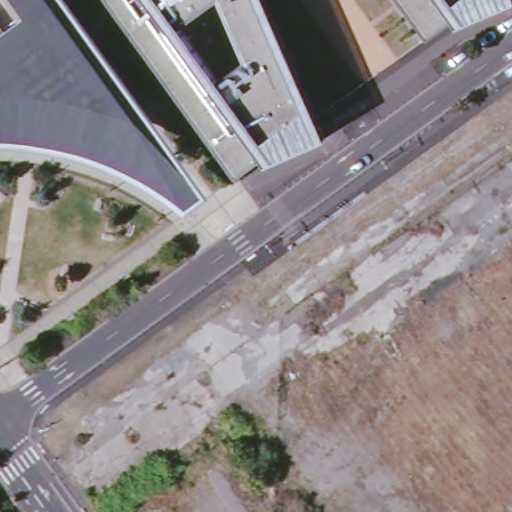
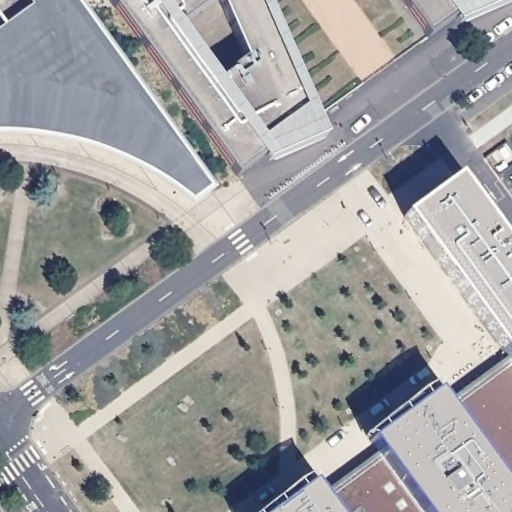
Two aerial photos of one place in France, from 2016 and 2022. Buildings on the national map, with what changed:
unchanged [(53,10),(0,48),(0,0),(67,0),(53,10)]
unchanged [(317,120),(325,139),(266,165),(262,159),(237,177),(109,0),(265,0),(317,120)]
unchanged [(457,27),(453,21),(429,39),(401,0),(512,0),(512,2),(457,27)]
unchanged [(57,16),(75,3),(212,195),(215,199),(191,216),(187,213),(179,207),(164,197),(142,183),(119,171),(95,162),(80,157),(50,150),(32,148),(0,145),(0,48),(53,10),(57,16)]
new [(277,512),(313,486),(322,498),(380,454),(372,442),(437,394),(446,407),(507,360),(403,219),(457,180),(512,255),(512,512),(277,512)]

